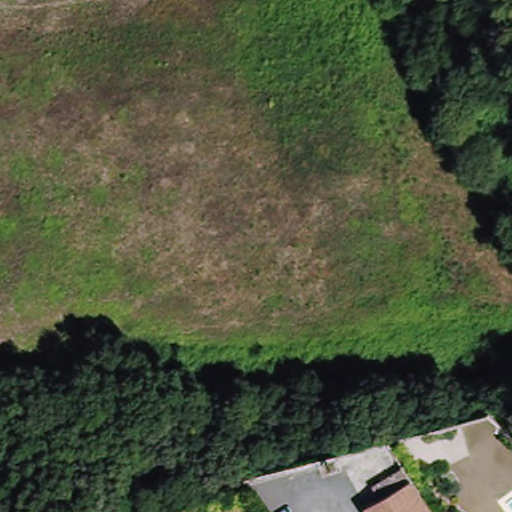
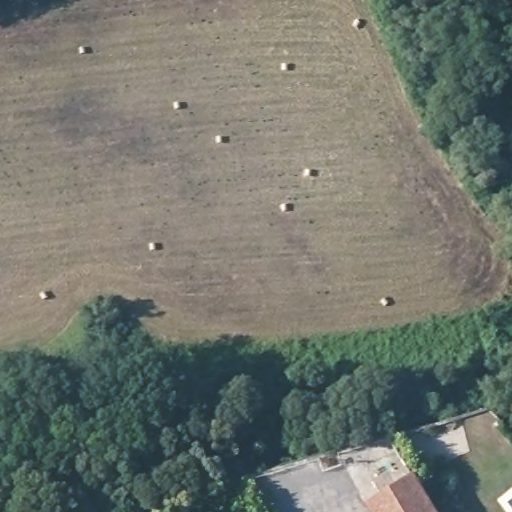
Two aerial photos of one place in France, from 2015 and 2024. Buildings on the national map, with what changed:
unchanged [(447,65),(452,77),(441,84),(435,70),(447,65)]
unchanged [(368,507),(382,498),(374,484),(394,472),(404,466),(408,472),(432,512),(370,512),(368,507)]
unchanged [(463,495),(473,512),(435,512),(463,495)]

